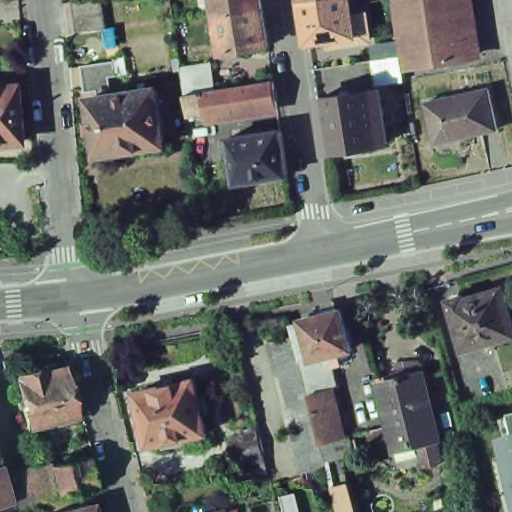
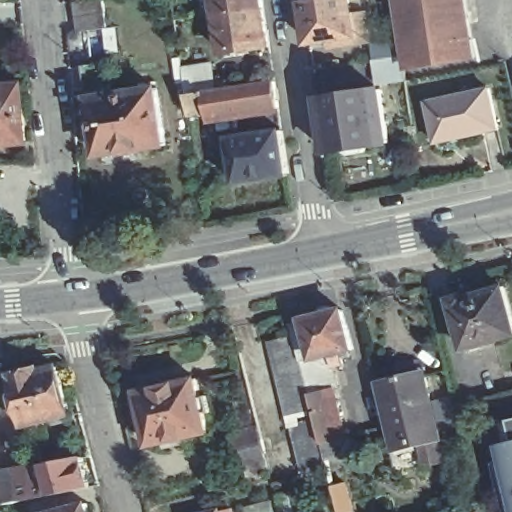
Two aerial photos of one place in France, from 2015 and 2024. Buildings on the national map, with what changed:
unchanged [(77,17),(75,2),(90,0),(105,0),(105,1),(107,12),(109,27),(80,32),(77,17)]
unchanged [(220,18),(217,0),(263,0),(265,12),(220,18)]
unchanged [(305,0),(334,0),(306,5),(305,0)]
unchanged [(339,50),(338,43),(312,47),(308,23),(306,5),(334,0),(351,0),(355,20),(368,17),(372,44),(339,50)]
unchanged [(411,71),(399,0),(468,0),(478,60),(411,71)]
unchanged [(268,39),(269,39),(271,52),(226,59),(220,18),(265,12),(268,39)]
unchanged [(377,65),(375,51),(389,48),(388,37),(400,36),(404,60),(408,85),(380,90),(377,65)]
unchanged [(117,61),(120,75),(113,76),(115,87),(90,91),(86,66),(117,61)]
unchanged [(230,69),(234,95),(203,99),(202,89),(200,74),(230,69)]
unchanged [(22,95),(26,140),(0,142),(0,88),(20,87),(22,95)]
unchanged [(159,87),(167,145),(143,149),(144,152),(125,155),(124,152),(101,156),(92,98),(159,87)]
unchanged [(205,101),(222,97),(292,87),(295,114),(227,124),(225,117),(208,120),(205,101)]
unchanged [(491,87),(500,129),(438,143),(428,102),(491,87)]
unchanged [(383,94),(390,147),(370,150),(365,156),(354,157),(348,153),(329,156),(322,104),(383,94)]
unchanged [(284,131),(291,177),(239,185),(232,139),(284,131)]
unchanged [(512,322),(512,340),(492,345),(492,347),(465,355),(448,302),(463,297),(465,302),(503,291),(512,322)]
unchanged [(280,403),(277,392),(273,378),(270,367),(267,356),(265,343),(290,337),(287,325),(300,322),(300,321),(338,311),(349,348),(343,350),(345,357),(337,359),(338,365),(327,367),(333,387),(325,390),(325,395),(329,408),(333,425),(337,437),(345,436),(350,453),(338,457),(341,468),(342,470),(339,470),(350,512),(337,512),(328,474),(325,475),(323,467),(303,471),(292,427),(286,428),(283,416),(280,403)]
unchanged [(22,431),(20,423),(7,375),(33,367),(37,365),(45,362),(49,363),(50,366),(53,366),(65,413),(60,414),(62,421),(55,422),(53,416),(37,420),(38,427),(22,431)]
unchanged [(190,446),(188,437),(164,442),(163,437),(150,441),(138,387),(197,373),(200,392),(206,391),(210,407),(204,408),(208,427),(207,427),(210,442),(190,446)]
unchanged [(390,450),(395,448),(380,388),(398,384),(398,383),(405,382),(425,378),(440,443),(418,449),(423,468),(402,473),(397,474),(390,450)]
unchanged [(268,470),(247,476),(244,465),(237,466),(230,439),(258,432),(268,470)]
unchanged [(504,442),(512,439),(512,474),(504,442)]
unchanged [(48,462),(83,456),(89,487),(55,495),(37,497),(21,501),(2,505),(0,505),(0,472),(15,470),(32,466),(48,462)]
unchanged [(93,503),(95,512),(59,512),(93,503)]

